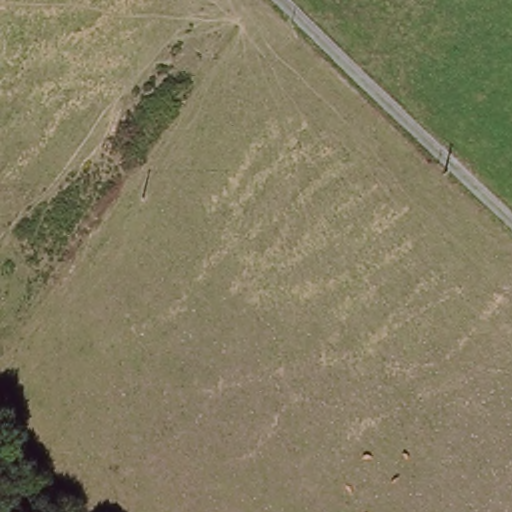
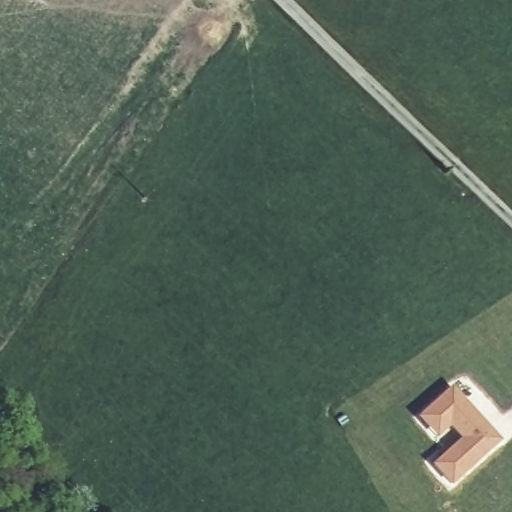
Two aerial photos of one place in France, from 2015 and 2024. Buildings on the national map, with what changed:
new [(450,486),(431,464),(460,439),(450,426),(435,439),(415,417),(451,385),(500,441),(450,486)]

